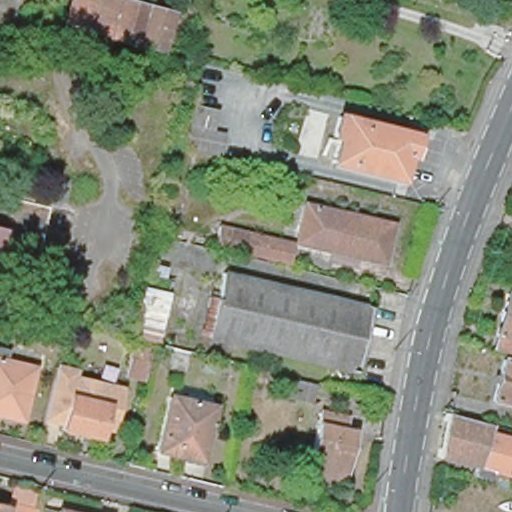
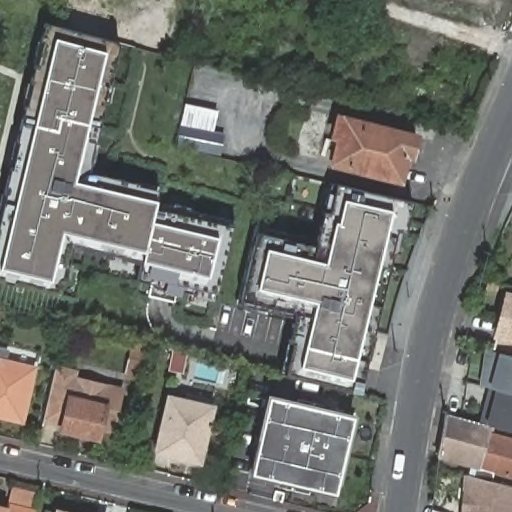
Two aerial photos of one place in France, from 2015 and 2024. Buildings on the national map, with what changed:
unchanged [(106,36),(62,24),(69,0),(108,0),(170,16),(161,51),(136,45),(136,47),(105,39),(106,36)]
new [(119,43),(89,172),(159,190),(155,207),(231,227),(215,292),(139,275),(141,262),(71,245),(60,294),(0,280),(0,214),(45,22),(105,39),(119,43)]
unchanged [(186,105),(217,112),(212,133),(225,136),(220,157),(180,147),(176,147),(185,105),(186,105)]
unchanged [(332,161),(338,139),(332,137),(338,116),(405,135),(417,138),(412,157),(405,155),(398,179),(332,161)]
demolished [(30,285),(0,277),(0,177),(50,188),(30,285)]
new [(405,232),(396,231),(360,392),(283,374),(291,342),(288,341),(295,313),(240,300),(256,230),(315,244),(324,210),(328,210),(335,183),(413,201),(405,232)]
demolished [(385,260),(293,240),(302,200),(392,221),(385,260)]
demolished [(177,222),(173,241),(156,237),(161,217),(177,222)]
demolished [(287,262),(212,245),(217,222),(293,240),(287,262)]
demolished [(210,307),(201,305),(205,294),(213,297),(220,275),(365,313),(350,376),(202,335),(210,307)]
demolished [(156,338),(154,337),(128,332),(141,285),(167,291),(156,338)]
unchanged [(505,293),(512,295),(512,352),(511,353),(490,347),(505,293)]
unchanged [(135,338),(150,342),(144,372),(127,369),(135,338)]
new [(482,386),(491,350),(501,352),(512,355),(512,395),(491,388),(482,386)]
unchanged [(7,367),(36,373),(24,424),(4,420),(0,419),(0,354),(10,356),(7,367)]
demolished [(503,358),(512,361),(512,404),(492,398),(503,358)]
unchanged [(110,401),(71,392),(61,431),(37,421),(51,362),(76,367),(76,376),(124,383),(117,424),(105,422),(110,401)]
demolished [(316,388),(312,405),(284,397),(288,381),(316,388)]
new [(491,388),(512,395),(512,433),(487,427),(482,425),(487,406),(491,388)]
unchanged [(110,401),(105,422),(100,441),(61,431),(71,392),(110,401)]
new [(270,397),(355,417),(337,493),(254,473),(270,397)]
unchanged [(167,398),(210,408),(199,460),(156,450),(167,398)]
demolished [(315,412),(344,418),(342,431),(352,433),(342,481),(302,472),(315,412)]
unchanged [(480,471),(441,460),(449,417),(492,430),(490,437),(512,444),(512,480),(496,476),(494,484),(477,480),(480,471)]
new [(462,512),(466,477),(477,480),(494,484),(512,488),(512,512),(462,512)]
demolished [(491,499),(493,488),(509,492),(507,502),(510,503),(508,512),(476,512),(479,497),(491,499)]
unchanged [(0,512),(0,506),(9,508),(8,512),(0,512)]

